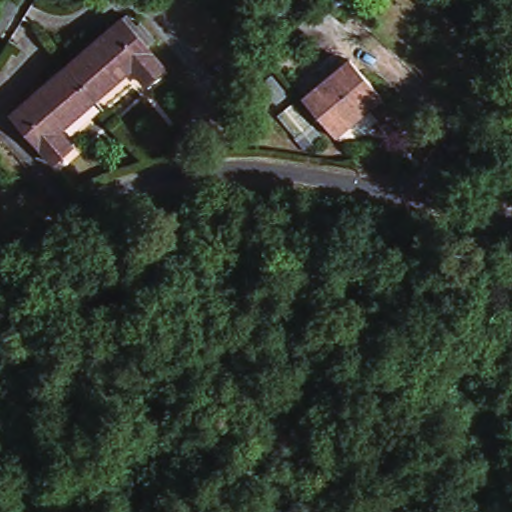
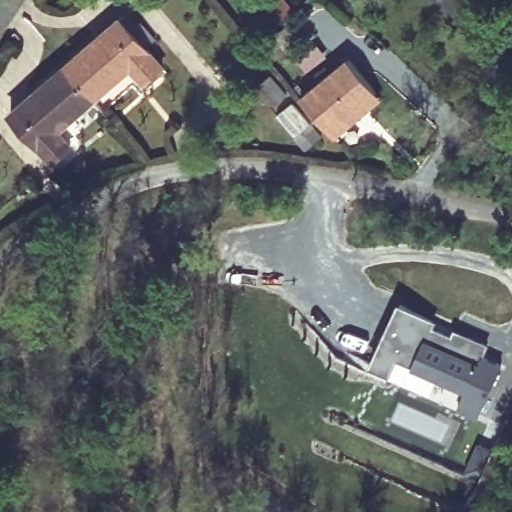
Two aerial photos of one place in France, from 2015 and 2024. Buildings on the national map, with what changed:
unchanged [(301,11),(284,23),(295,36),(281,47),(268,33),(272,28),(260,12),(274,0),(291,0),(301,11)]
unchanged [(165,75),(144,92),(131,80),(62,136),(75,150),(52,170),(9,118),(121,24),(165,75)]
unchanged [(302,97),(352,62),(377,95),(382,102),(335,138),(327,130),(302,97)]
unchanged [(272,72),(289,95),(278,104),(260,82),(272,72)]
unchanged [(292,102),(320,137),(305,151),(277,114),(292,102)]
new [(438,319),(435,326),(453,334),(456,328),(490,343),(482,359),(501,366),(477,418),(367,368),(398,302),(438,319)]

